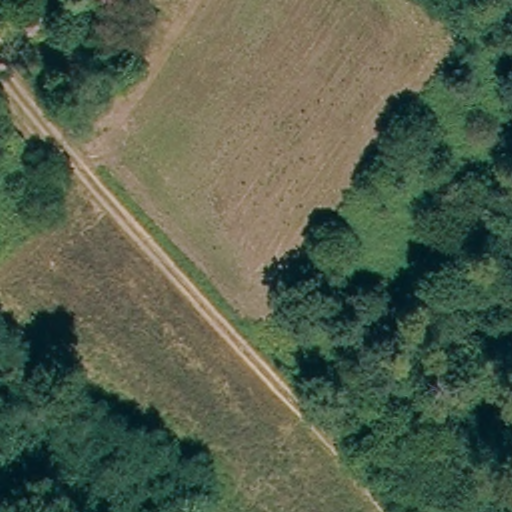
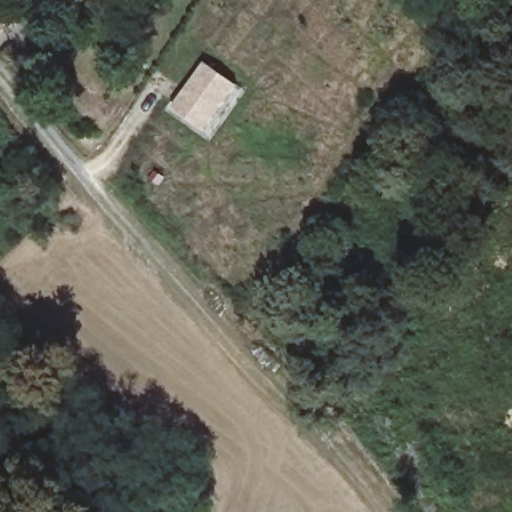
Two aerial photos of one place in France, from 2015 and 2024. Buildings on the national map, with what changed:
new [(238,86),(205,132),(173,109),(205,63),(238,86)]

